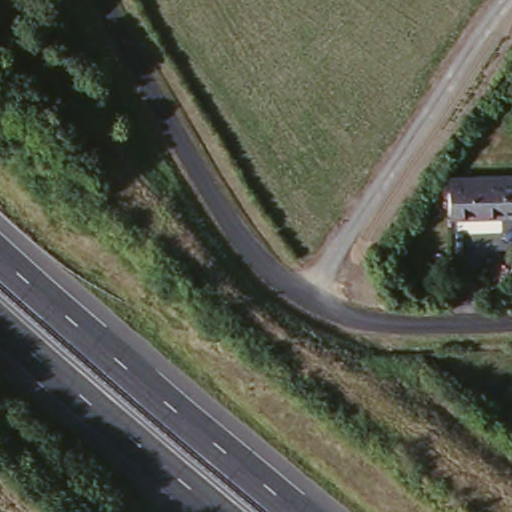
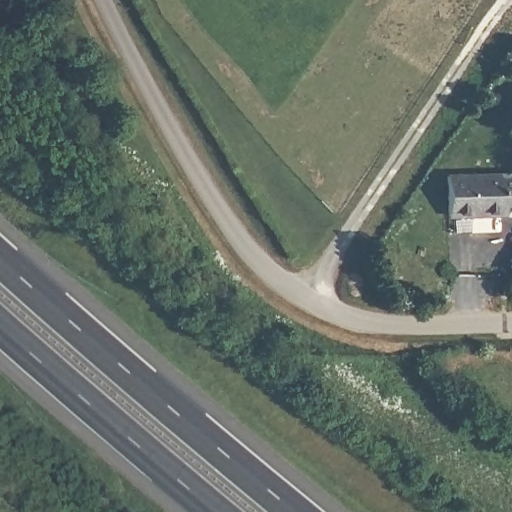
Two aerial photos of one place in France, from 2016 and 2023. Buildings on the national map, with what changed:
unchanged [(512,210),(448,214),(446,174),(512,171),(512,210)]

